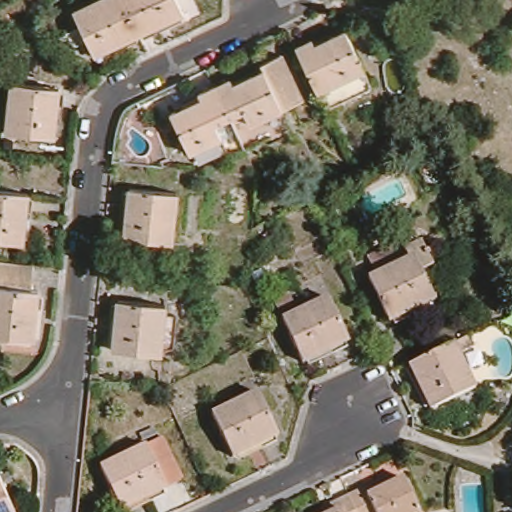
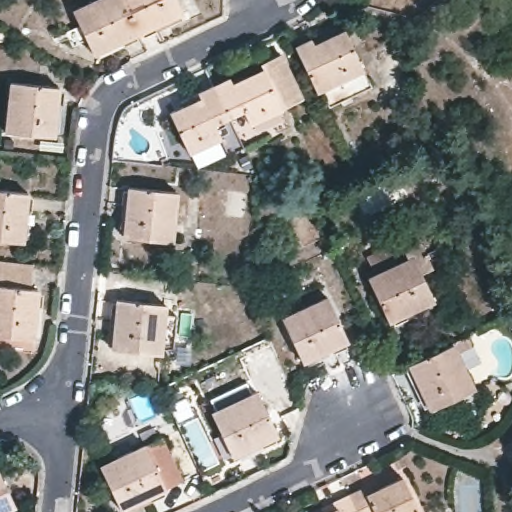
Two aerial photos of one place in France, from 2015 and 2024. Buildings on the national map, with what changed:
unchanged [(143,33),(99,54),(78,11),(102,0),(127,0),(143,33)]
unchanged [(188,12),(143,33),(127,0),(182,0),(188,12)]
unchanged [(324,95),(317,81),(313,83),(291,36),(306,29),(309,35),(340,21),(366,76),(324,95)]
unchanged [(260,64),(280,54),(300,99),(250,122),(243,109),(228,116),(213,85),(230,77),(233,83),(263,69),(260,64)]
unchanged [(58,136),(11,131),(15,82),(64,87),(58,136)]
unchanged [(214,123),(221,137),(189,152),(171,113),(201,99),(198,92),(213,85),(228,116),(214,123)]
unchanged [(176,240),(129,235),(133,187),(181,191),(176,240)]
unchanged [(0,189),(33,192),(27,242),(0,239),(0,189)]
unchanged [(408,259),(425,251),(437,275),(426,280),(439,309),(393,330),(373,286),(368,275),(375,271),(373,266),(394,255),(403,272),(413,268),(408,259)]
unchanged [(24,282),(38,283),(33,333),(0,330),(0,263),(25,264),(24,282)]
unchanged [(308,360),(288,317),(280,301),(294,294),(301,311),(332,296),(353,339),(308,360)]
unchanged [(119,320),(121,299),(171,303),(169,314),(181,314),(178,349),(166,348),(166,353),(143,351),(117,349),(119,320)]
unchanged [(424,384),(414,364),(474,335),(479,346),(463,353),(479,387),(456,398),(435,408),(424,384)]
unchanged [(227,434),(216,412),(261,391),(282,435),(262,444),(238,456),(227,434)]
unchanged [(138,443),(135,438),(149,432),(157,450),(173,486),(161,492),(120,512),(114,512),(94,472),(132,454),(129,447),(138,443)]
unchanged [(0,511),(0,476),(14,504),(0,511)]
unchanged [(363,488),(376,482),(380,488),(403,478),(419,512),(358,512),(350,494),(363,488)]
unchanged [(325,512),(323,507),(336,501),(350,494),(358,512),(325,512)]

